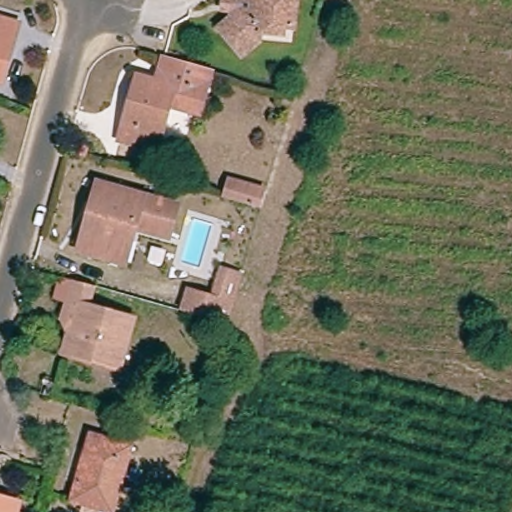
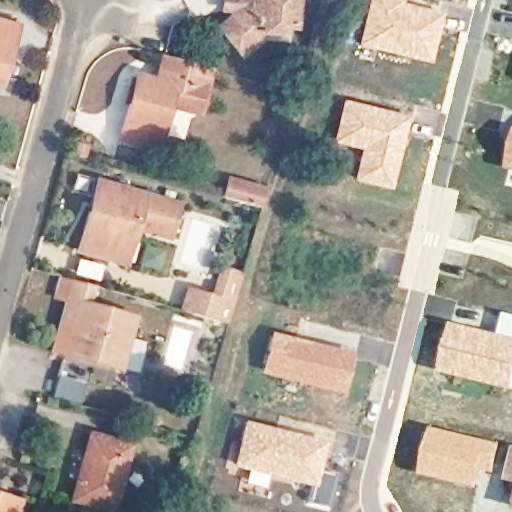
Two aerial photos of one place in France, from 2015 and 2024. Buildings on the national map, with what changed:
unchanged [(254,39),(237,55),(213,29),(228,16),(228,12),(218,12),(219,0),(229,0),(291,0),(289,28),(277,28),(277,34),(254,33),(254,39)]
new [(414,0),(442,12),(428,64),(355,44),(369,0),(414,0)]
unchanged [(6,89),(0,87),(0,25),(22,31),(17,49),(12,67),(6,89)]
unchanged [(161,141),(156,158),(119,147),(129,112),(136,84),(143,85),(150,88),(157,83),(163,63),(211,76),(202,114),(193,120),(186,148),(161,141)]
new [(343,99),(408,116),(391,190),(351,180),(359,149),(330,142),(343,99)]
new [(512,170),(507,169),(512,147),(512,170)]
unchanged [(260,210),(226,200),(231,183),(265,192),(260,210)]
unchanged [(98,256),(76,249),(94,184),(160,202),(151,234),(117,224),(114,237),(107,259),(98,256)]
unchanged [(213,295),(218,277),(221,268),(227,269),(242,274),(227,323),(183,309),(189,289),(213,295)]
unchanged [(120,372),(68,357),(77,324),(65,321),(70,302),(75,284),(97,290),(92,308),(135,321),(120,372)]
new [(498,332),(504,310),(512,313),(512,390),(439,371),(452,320),(498,332)]
new [(270,331),(351,352),(340,394),(258,374),(270,331)]
new [(59,379),(83,386),(78,404),(53,398),(59,379)]
new [(244,419),(327,441),(319,471),(335,476),(332,489),(326,487),(314,489),(267,477),(264,488),(242,483),(245,471),(230,467),(244,419)]
new [(432,425),(502,444),(493,474),(482,472),(477,488),(419,474),(432,425)]
unchanged [(129,448),(110,512),(108,512),(72,501),(91,437),(129,448)]
new [(512,481),(504,479),(512,453),(512,481)]
unchanged [(17,503),(14,512),(0,512),(0,498),(17,503)]

